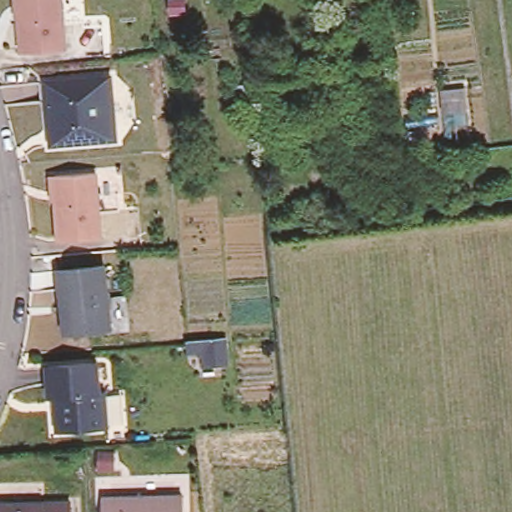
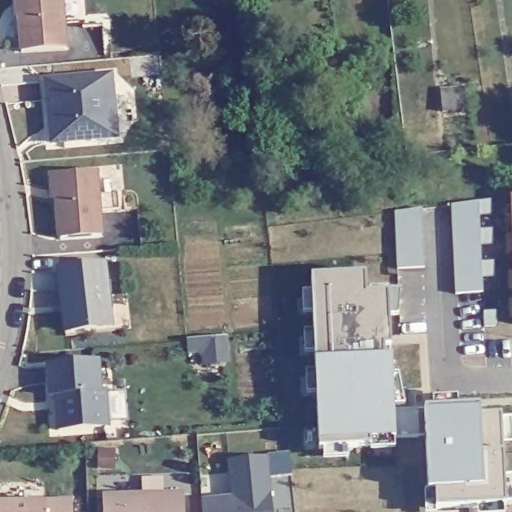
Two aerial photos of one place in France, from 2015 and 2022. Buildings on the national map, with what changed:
unchanged [(19,52),(16,20),(14,0),(81,0),(83,22),(62,24),(63,49),(19,52)]
unchanged [(113,134),(48,139),(43,77),(108,72),(113,134)]
unchanged [(56,240),(53,203),(50,203),(48,177),(54,176),(95,172),(100,235),(56,240)]
new [(491,199),(493,213),(479,214),(479,229),(492,229),(492,244),(479,242),(481,262),(494,261),(494,276),(482,276),(482,292),(456,293),(452,205),(491,199)]
new [(422,209),(424,267),(398,267),(396,212),(422,209)]
unchanged [(58,302),(54,272),(96,261),(106,329),(68,333),(61,333),(58,302)]
new [(366,293),(388,292),(387,285),(401,285),(404,321),(389,322),(392,373),(406,372),(407,407),(393,407),(394,438),(396,438),(397,450),(371,451),(371,446),(348,446),(349,458),(324,460),(323,448),(319,449),(317,394),(305,394),(304,373),(316,372),(315,355),(304,355),(303,331),(314,331),(313,315),(301,316),(301,291),(312,291),(311,276),(366,275),(366,293)]
unchanged [(102,393),(108,392),(109,428),(58,431),(56,397),(52,397),(49,367),(100,363),(102,393)]
new [(479,406),(479,416),(500,415),(504,505),(497,506),(497,511),(437,508),(436,490),(429,490),(426,410),(479,406)]
new [(203,512),(201,499),(231,496),(228,460),(268,455),(274,512),(203,512)]
unchanged [(181,493),(182,512),(103,512),(102,496),(181,493)]
unchanged [(69,501),(70,512),(0,512),(0,503),(43,502),(69,501)]

